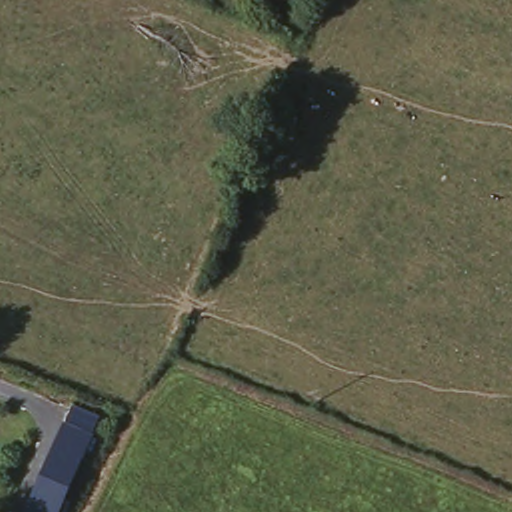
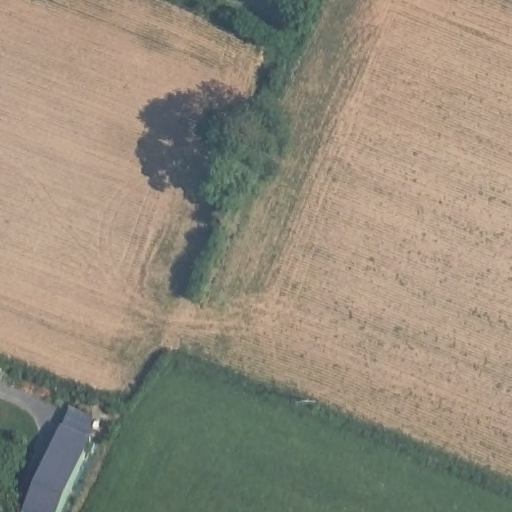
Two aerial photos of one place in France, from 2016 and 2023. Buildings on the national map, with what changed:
unchanged [(67,425),(74,408),(101,418),(61,512),(28,512),(64,423),(67,425)]

